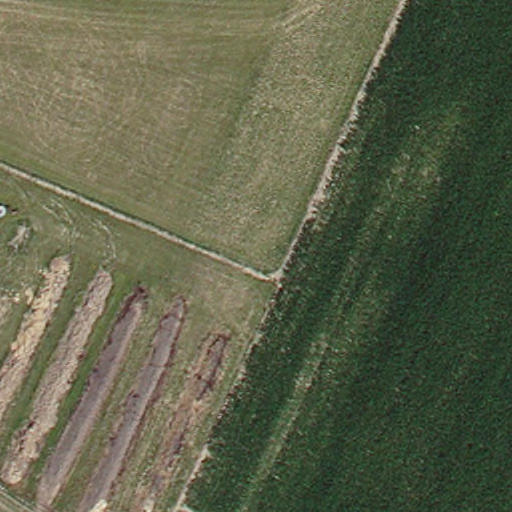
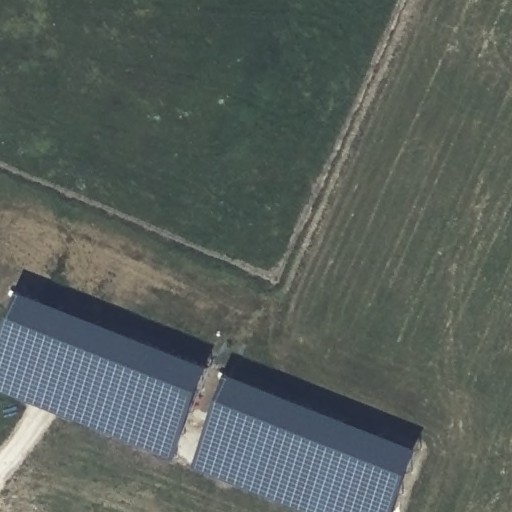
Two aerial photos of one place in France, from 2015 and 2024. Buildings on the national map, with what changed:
new [(0,391),(0,355),(25,296),(420,463),(399,512),(287,512),(0,391)]

